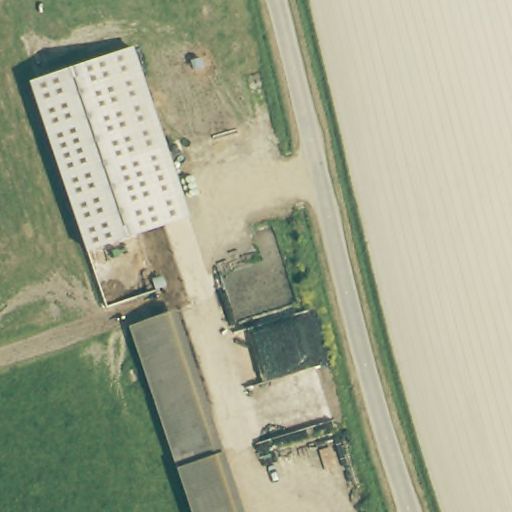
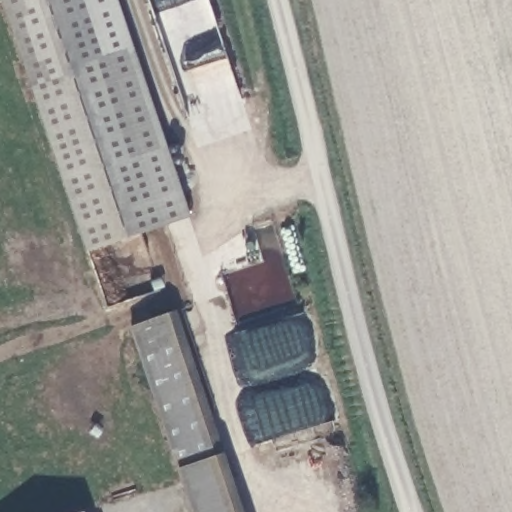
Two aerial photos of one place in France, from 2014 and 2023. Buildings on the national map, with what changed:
new [(118,0),(134,47),(29,82),(1,0),(118,0)]
unchanged [(134,47),(189,217),(87,251),(29,82),(134,47)]
unchanged [(135,328),(173,315),(241,512),(199,512),(135,328)]

